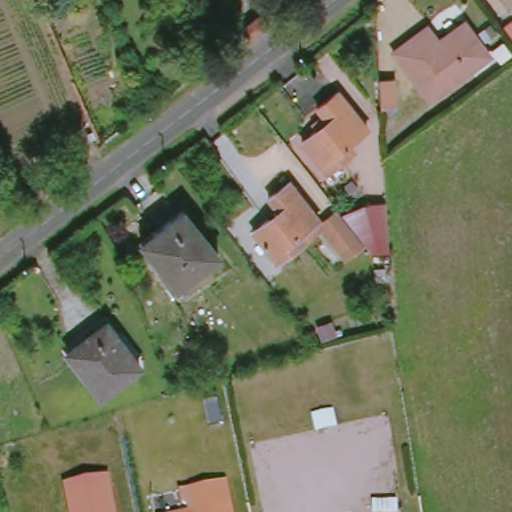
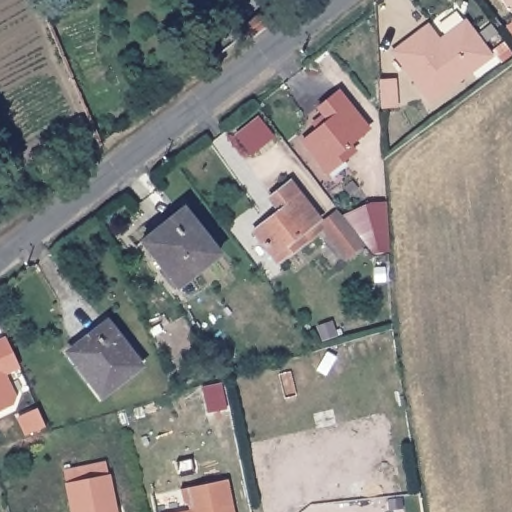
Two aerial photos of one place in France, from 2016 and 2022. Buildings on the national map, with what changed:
unchanged [(503,0),(512,0),(512,12),(503,0)]
unchanged [(487,60),(427,102),(392,52),(427,29),(439,45),(463,27),(487,60)]
unchanged [(370,131),(348,149),(354,157),(331,175),(306,144),(331,127),(322,114),(343,96),(370,131)]
unchanged [(301,237),(306,245),(284,262),(259,232),(282,214),(273,201),(293,184),(323,221),(301,237)]
unchanged [(323,221),(341,211),(348,217),(370,207),(387,207),(397,254),(379,257),(369,245),(348,260),(325,231),(306,245),(301,237),(323,221)]
unchanged [(178,289),(147,247),(189,214),(221,257),(178,289)]
unchanged [(68,356),(111,321),(149,373),(105,401),(68,356)]
new [(12,406),(0,411),(0,340),(4,338),(18,368),(5,375),(15,398),(12,406)]
unchanged [(183,511),(178,488),(225,477),(231,512),(177,512),(183,511)]
unchanged [(107,479),(114,512),(70,512),(65,487),(107,479)]

